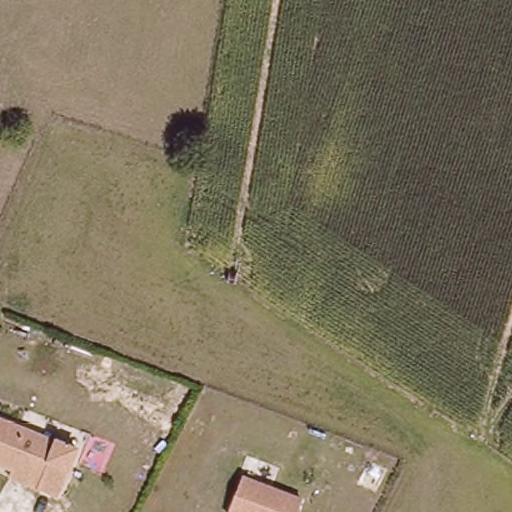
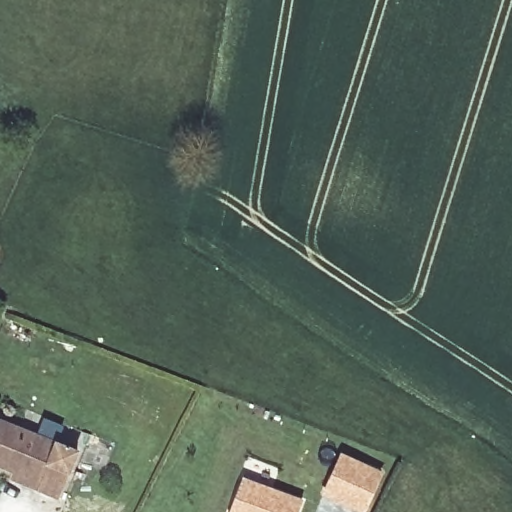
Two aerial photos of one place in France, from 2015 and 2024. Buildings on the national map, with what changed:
unchanged [(1,317),(0,319),(0,317),(1,317)]
unchanged [(12,466),(0,461),(0,415),(76,446),(58,493),(37,484),(10,473),(12,466)]
new [(381,472),(363,512),(360,512),(322,495),(340,452),(381,472)]
unchanged [(224,512),(237,476),(297,499),(293,512),(224,512)]

